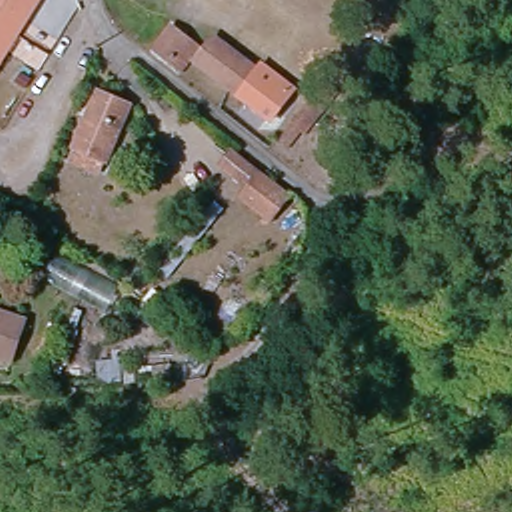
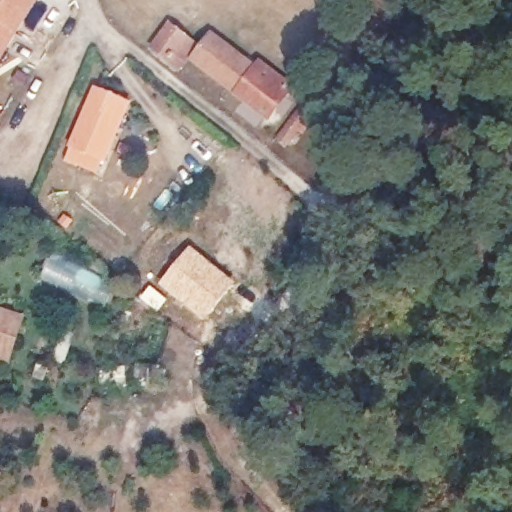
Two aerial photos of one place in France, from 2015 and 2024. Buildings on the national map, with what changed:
unchanged [(40,0),(0,69),(0,0),(40,0)]
unchanged [(177,57),(189,36),(222,57),(210,75),(177,57)]
unchanged [(224,72),(242,51),(285,79),(265,103),(224,72)]
unchanged [(64,151),(104,86),(133,102),(95,168),(64,151)]
unchanged [(292,197),(268,224),(239,197),(249,187),(219,166),(235,151),(292,197)]
new [(190,246),(234,282),(204,321),(159,284),(190,246)]
unchanged [(19,364),(0,359),(0,308),(20,315),(35,321),(19,364)]
unchanged [(97,359),(124,361),(125,381),(101,384),(97,359)]

